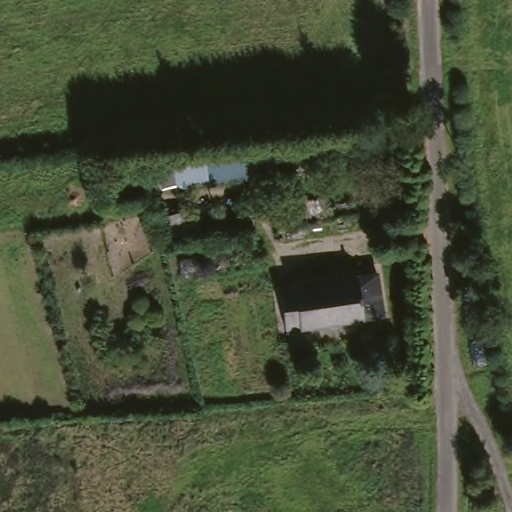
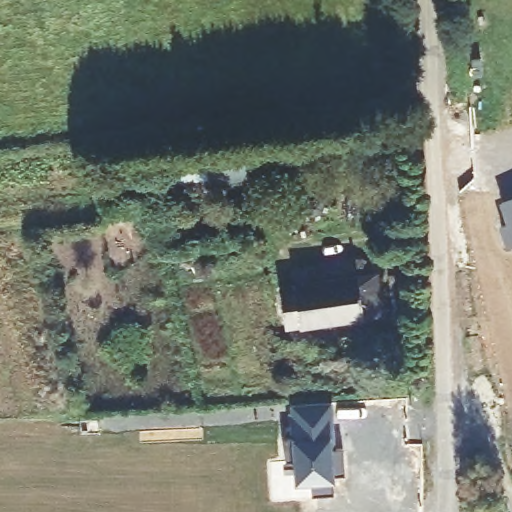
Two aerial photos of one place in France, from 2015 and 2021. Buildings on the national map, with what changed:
unchanged [(150,166),(275,152),(278,169),(210,177),(212,186),(153,193),(150,166)]
unchanged [(279,290),(375,279),(379,319),(284,331),(279,290)]
new [(295,461),(284,462),(284,440),(294,440),(292,407),(331,404),(333,438),(330,438),(330,449),(343,449),(345,476),(333,477),(333,482),(333,496),(312,497),(310,482),(297,483),(295,461)]

